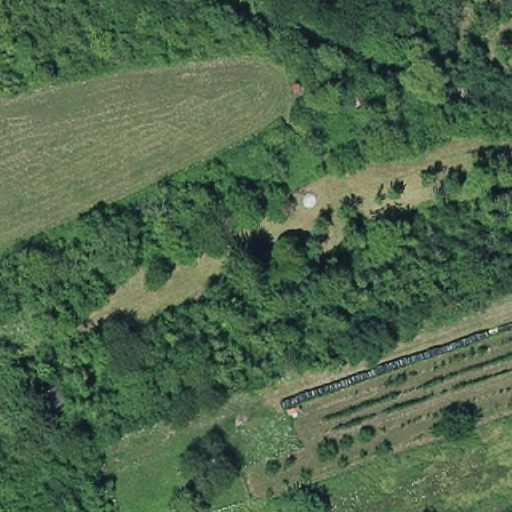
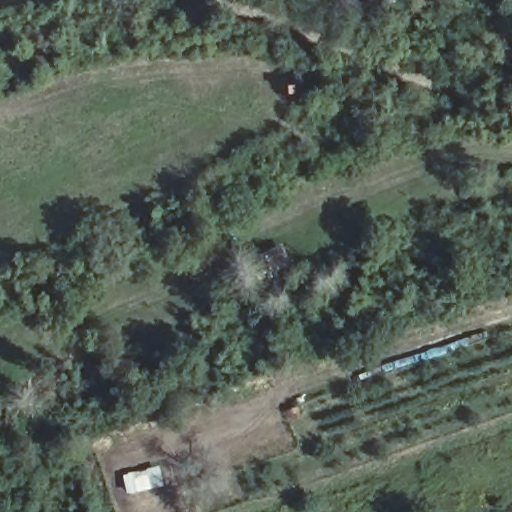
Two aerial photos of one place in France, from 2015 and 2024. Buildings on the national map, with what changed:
unchanged [(381,0),(383,0),(381,1),(381,0)]
unchanged [(30,388),(53,378),(61,403),(40,420),(30,388)]

